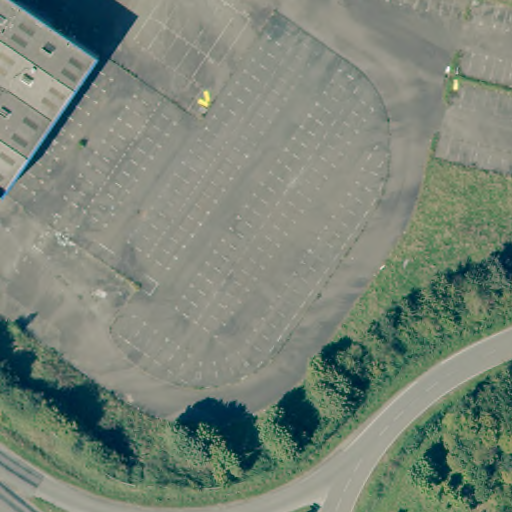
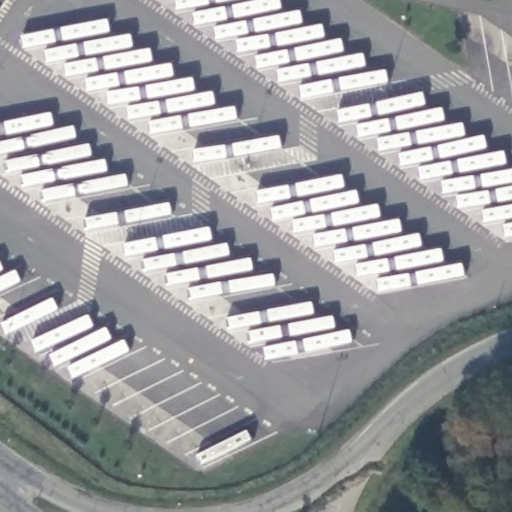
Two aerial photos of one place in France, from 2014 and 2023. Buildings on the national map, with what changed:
demolished [(0,0),(19,0),(97,54),(4,192),(0,190),(0,0)]

